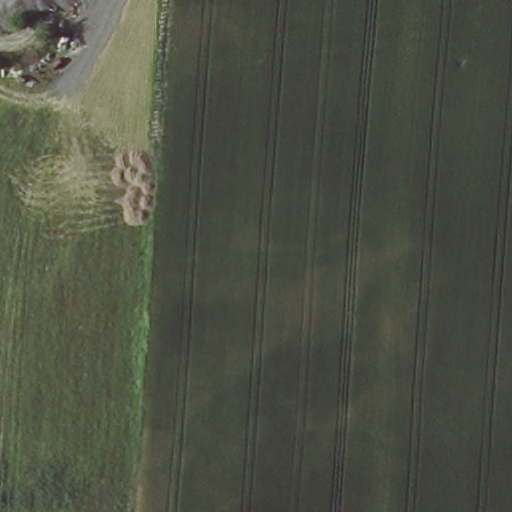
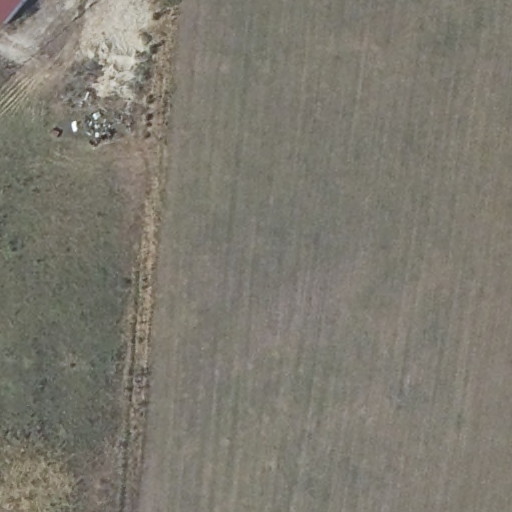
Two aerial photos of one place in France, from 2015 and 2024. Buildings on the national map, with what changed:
new [(11,25),(0,16),(0,0),(31,0),(11,25)]

